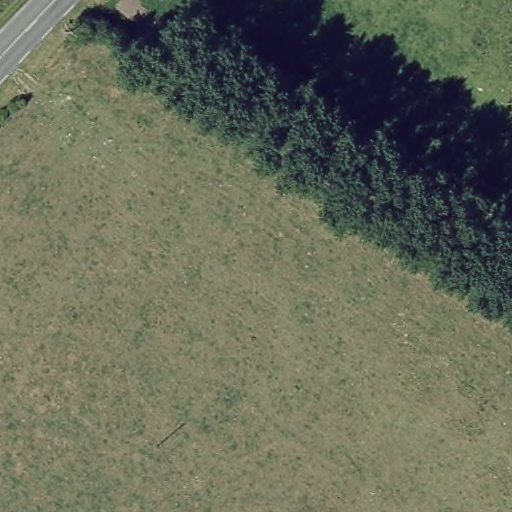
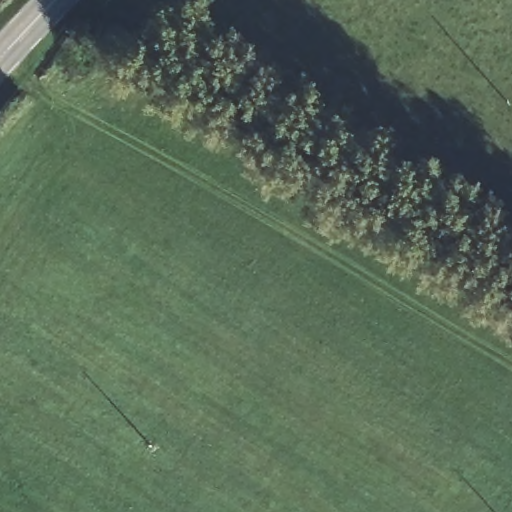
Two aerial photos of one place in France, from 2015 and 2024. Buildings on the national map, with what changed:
[]

